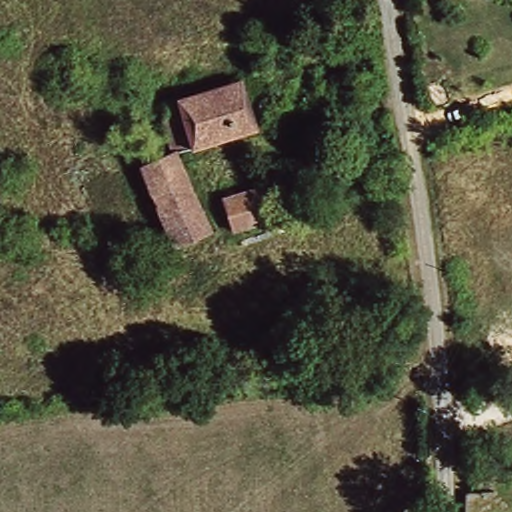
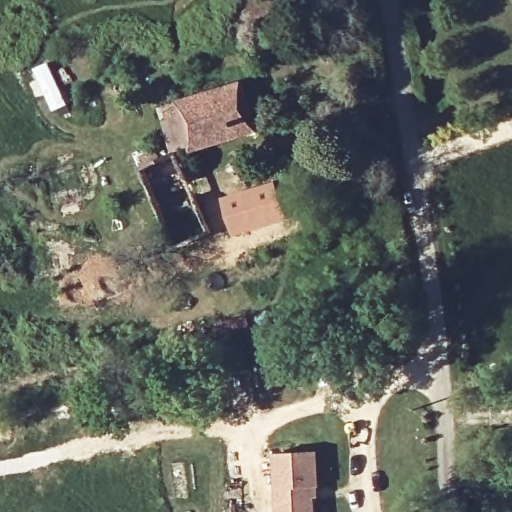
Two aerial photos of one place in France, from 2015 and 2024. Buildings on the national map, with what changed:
unchanged [(165,123),(182,118),(176,100),(241,81),(254,131),(174,155),(165,123)]
unchanged [(173,250),(133,167),(136,166),(132,154),(143,151),(147,163),(174,155),(207,235),(173,250)]
unchanged [(233,231),(225,193),(272,182),(282,218),(233,231)]
new [(320,495),(317,495),(317,512),(277,512),(275,454),(318,452),(320,495)]

